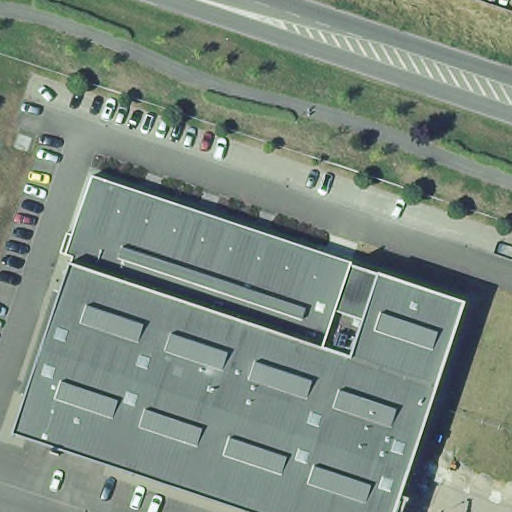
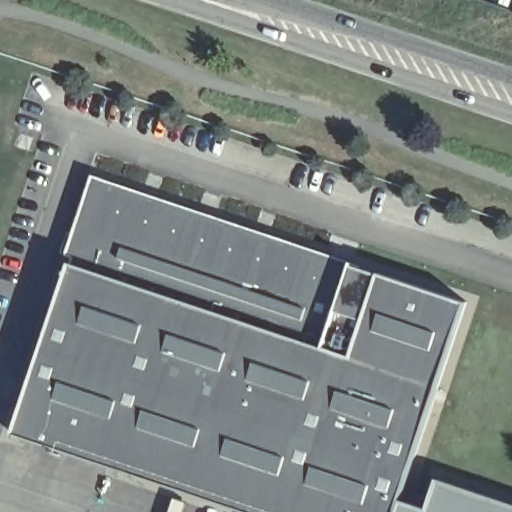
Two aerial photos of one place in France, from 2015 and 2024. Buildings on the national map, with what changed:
unchanged [(230,512),(5,433),(68,261),(92,177),(292,247),(347,265),(461,305),(391,512),(230,512)]
new [(428,508),(438,479),(512,503),(512,512),(391,512),(396,498),(428,508)]

